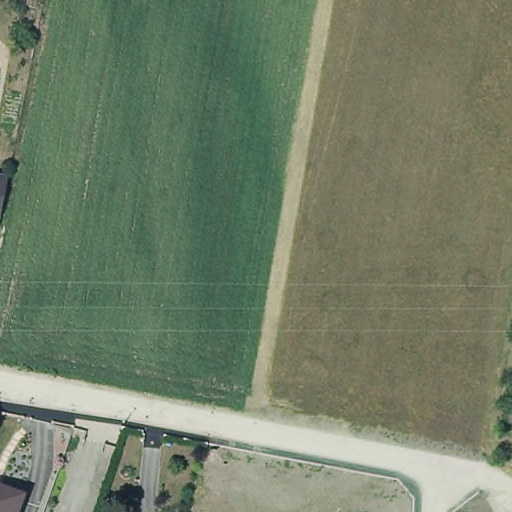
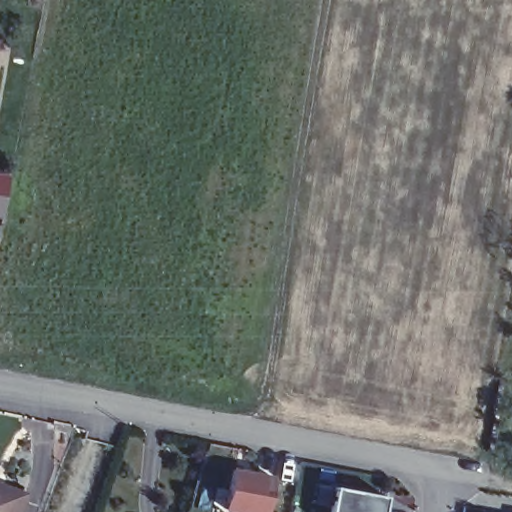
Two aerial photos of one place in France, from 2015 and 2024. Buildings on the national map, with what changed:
unchanged [(0,189),(0,171),(3,172),(0,189)]
new [(275,476),(268,512),(224,512),(233,467),(275,476)]
new [(335,487),(382,495),(387,496),(384,512),(330,512),(335,487)]
unchanged [(10,512),(0,512),(0,488),(17,494),(10,512)]

